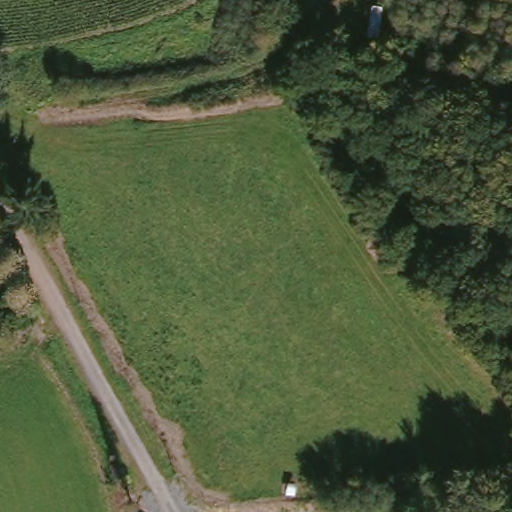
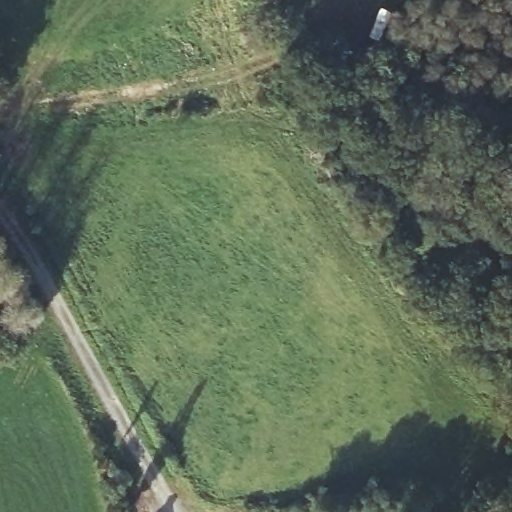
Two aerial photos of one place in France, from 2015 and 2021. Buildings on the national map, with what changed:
[]

